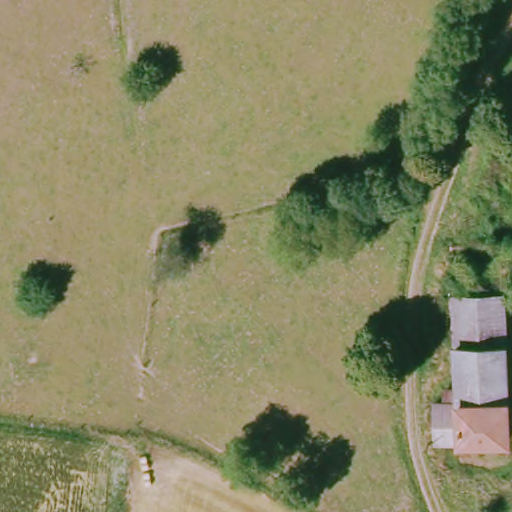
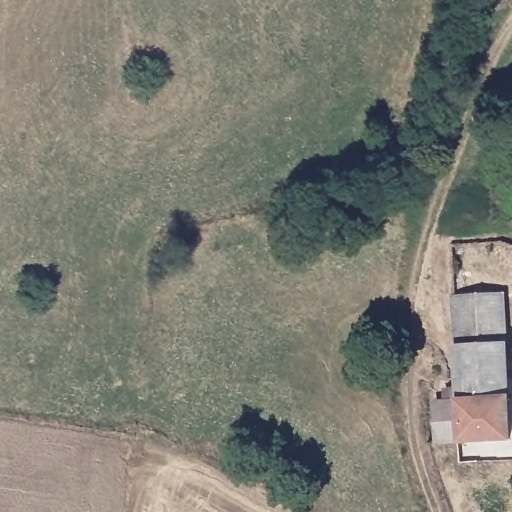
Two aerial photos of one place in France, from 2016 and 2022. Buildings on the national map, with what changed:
unchanged [(431,404),(451,403),(449,297),(498,295),(504,441),(432,445),(431,404)]

